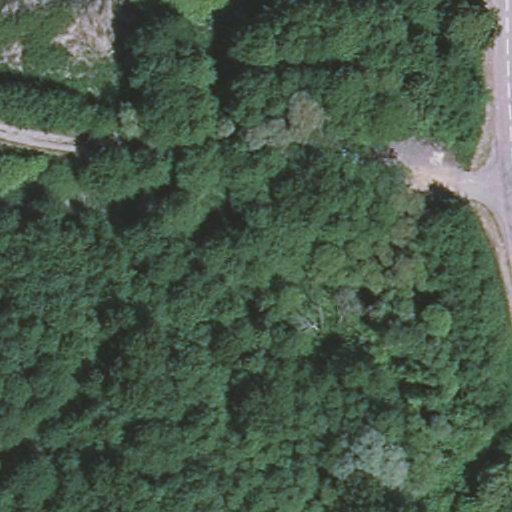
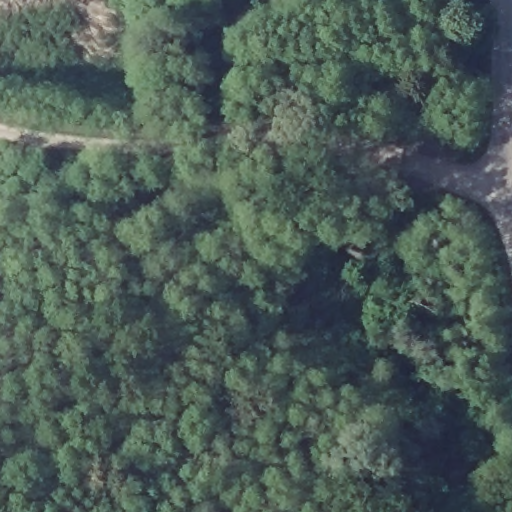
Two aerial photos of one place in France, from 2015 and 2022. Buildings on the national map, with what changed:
[]

